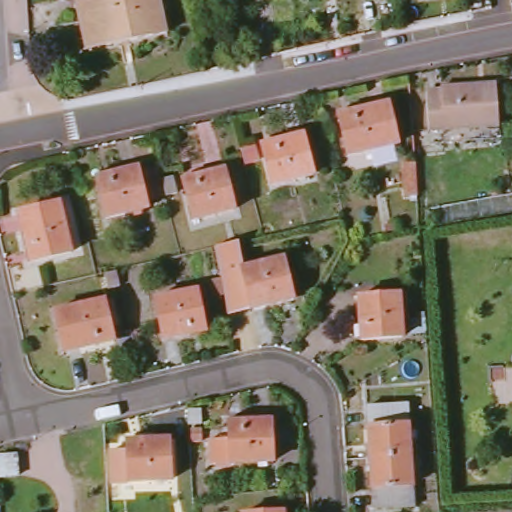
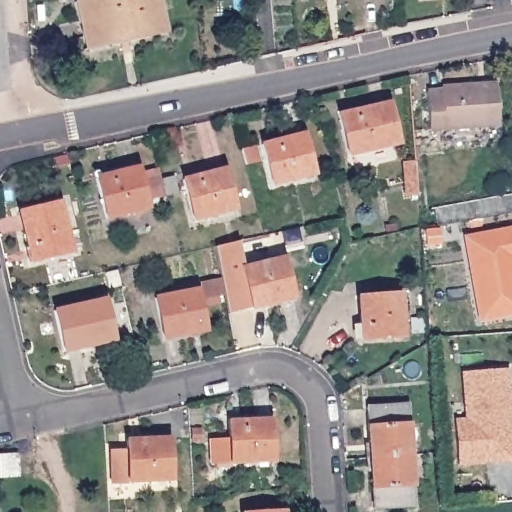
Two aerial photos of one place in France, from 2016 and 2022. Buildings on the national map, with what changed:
unchanged [(87,0),(159,0),(166,32),(132,41),(130,32),(86,42),(77,2),(87,0)]
unchanged [(428,92),(442,92),(442,89),(473,86),(474,90),(497,88),(500,127),(430,132),(428,92)]
unchanged [(338,109),(351,106),(353,113),(389,104),(399,145),(349,157),(338,109)]
unchanged [(265,152),(279,150),(277,143),(304,136),(314,177),(273,187),(265,152)]
unchanged [(241,151),(253,148),(258,167),(246,170),(241,151)]
unchanged [(416,171),(417,182),(406,182),(405,164),(415,163),(416,171)]
unchanged [(177,192),(166,195),(152,199),(145,171),(159,167),(162,179),(173,176),(177,192)]
unchanged [(96,179),(139,169),(149,208),(106,219),(96,179)]
unchanged [(182,181),(225,170),(236,210),(193,221),(182,181)]
new [(433,226),(430,209),(512,193),(512,213),(433,226)]
unchanged [(34,247),(29,248),(20,212),(61,203),(73,254),(38,263),(34,247)]
new [(463,236),(512,227),(512,317),(479,322),(463,236)]
unchanged [(215,242),(238,237),(244,265),(284,256),(292,288),(277,292),(279,298),(253,305),(229,310),(228,304),(225,288),(206,292),(203,279),(222,275),(215,242)]
unchanged [(155,294),(198,287),(206,327),(163,334),(155,294)]
unchanged [(368,324),(362,325),(360,298),(401,296),(404,337),(370,341),(368,324)]
unchanged [(55,312),(105,301),(114,336),(97,338),(98,345),(64,352),(55,312)]
new [(455,417),(465,417),(461,372),(509,368),(512,410),(512,463),(458,467),(455,417)]
unchanged [(371,459),(368,408),(407,405),(412,456),(371,459)]
unchanged [(277,422),(278,462),(217,466),(216,441),(235,440),(234,424),(277,422)]
unchanged [(118,447),(133,446),(132,436),(175,435),(177,476),(120,478),(118,447)]
unchanged [(18,455),(19,477),(0,477),(0,456),(18,455)]
unchanged [(412,456),(415,506),(376,510),(371,459),(412,456)]

